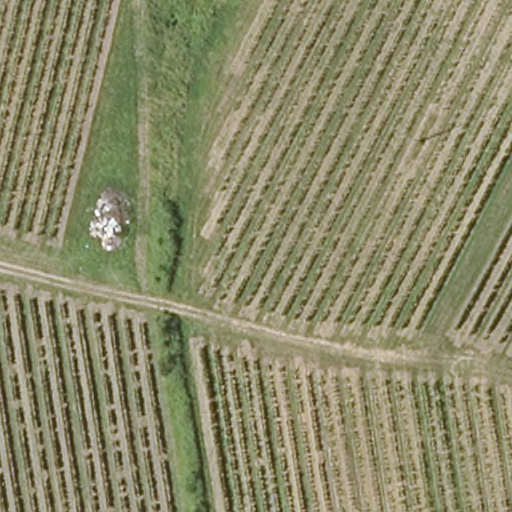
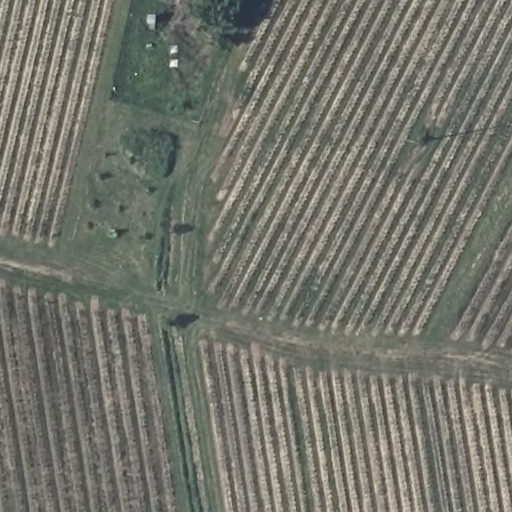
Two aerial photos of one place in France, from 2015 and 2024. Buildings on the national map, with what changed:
[]

